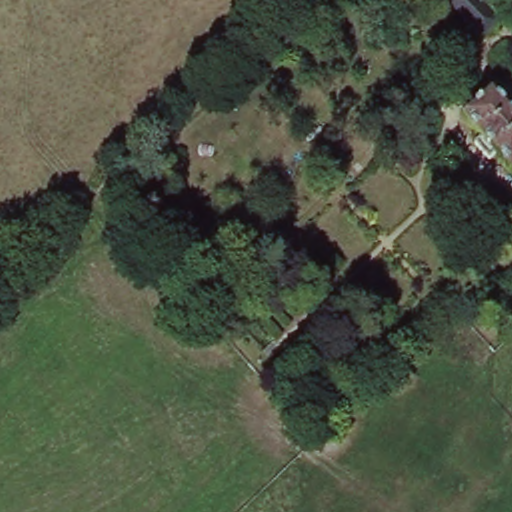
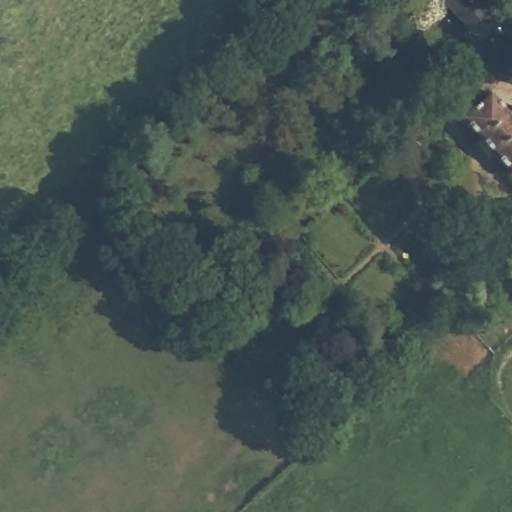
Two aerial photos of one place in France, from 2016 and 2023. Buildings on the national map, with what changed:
unchanged [(449,0),(491,0),(509,21),(487,40),(449,0)]
unchanged [(479,139),(461,119),(488,94),(506,114),(512,108),(512,176),(493,155),(486,161),(472,146),(473,145),(479,139)]

